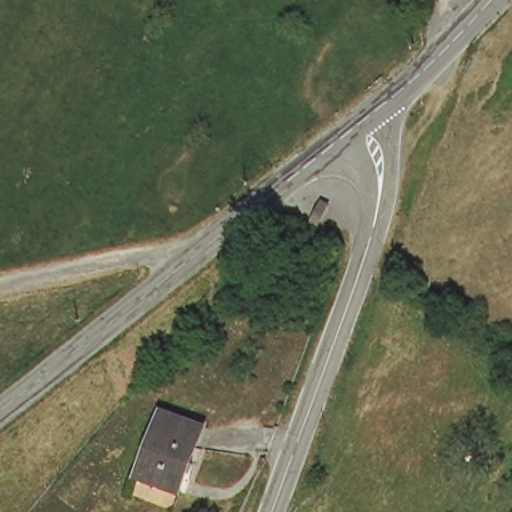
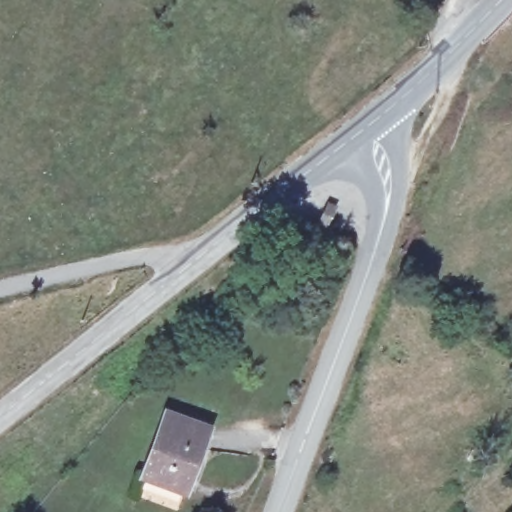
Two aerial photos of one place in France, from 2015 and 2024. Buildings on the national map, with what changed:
unchanged [(152,485),(165,424),(204,429),(192,492),(152,485)]

